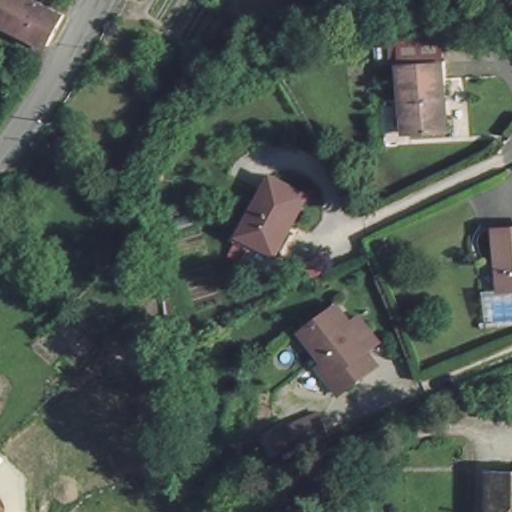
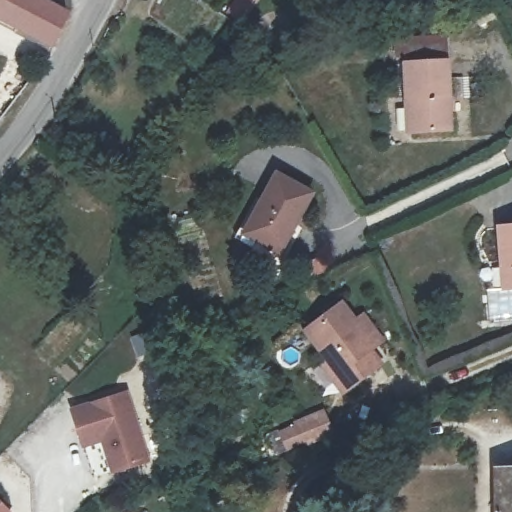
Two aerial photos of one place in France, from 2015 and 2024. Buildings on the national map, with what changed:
unchanged [(47,0),(60,5),(45,37),(0,16),(0,0),(47,0)]
unchanged [(407,98),(403,63),(448,57),(456,127),(415,132),(411,132),(407,98)]
unchanged [(245,232),(276,174),(312,192),(280,251),(245,232)]
unchanged [(497,223),(512,222),(512,284),(502,284),(497,223)]
unchanged [(320,365),(325,359),(305,331),(341,304),(356,322),(362,318),(381,342),(370,351),(381,366),(349,390),(342,394),(320,365)]
new [(125,390),(146,457),(112,468),(102,435),(82,442),(71,408),(125,390)]
unchanged [(283,426),(298,419),(297,416),(325,406),(335,425),(306,437),(305,435),(289,442),(283,426)]
unchanged [(494,475),(512,475),(512,512),(494,512),(494,475)]
unchanged [(9,512),(0,512),(0,503),(9,512)]

